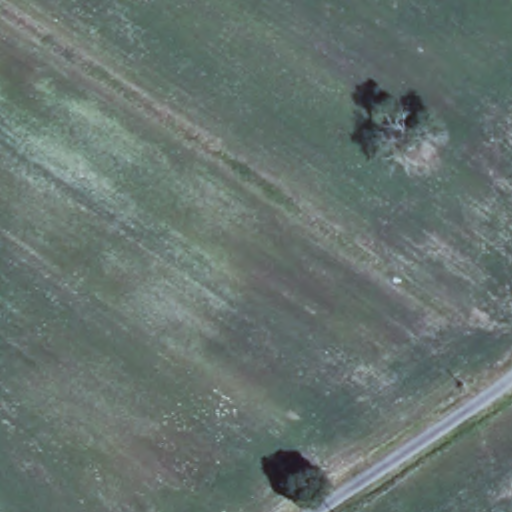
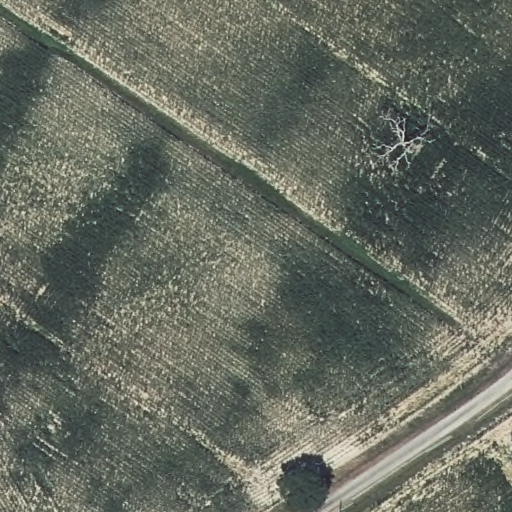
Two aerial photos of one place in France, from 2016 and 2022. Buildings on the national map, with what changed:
[]

